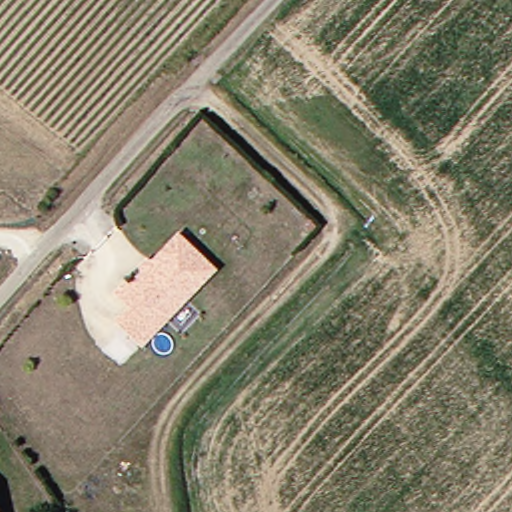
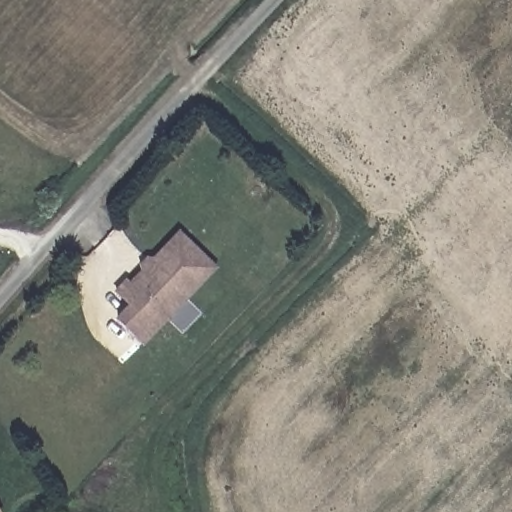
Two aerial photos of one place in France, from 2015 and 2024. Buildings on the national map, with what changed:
unchanged [(128,279),(132,282),(180,228),(215,263),(143,340),(120,318),(132,304),(119,290),(128,279)]
unchanged [(2,512),(0,512),(0,509),(2,512)]

